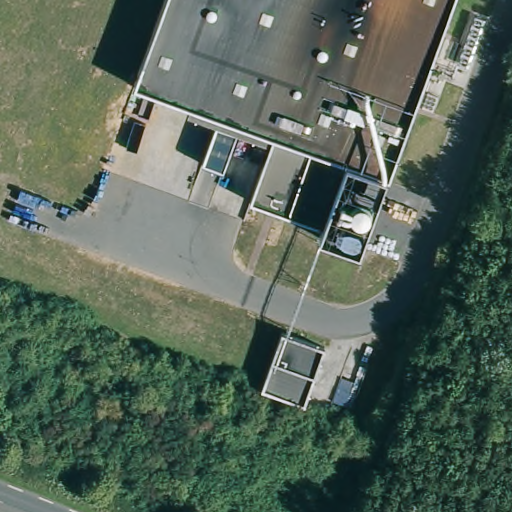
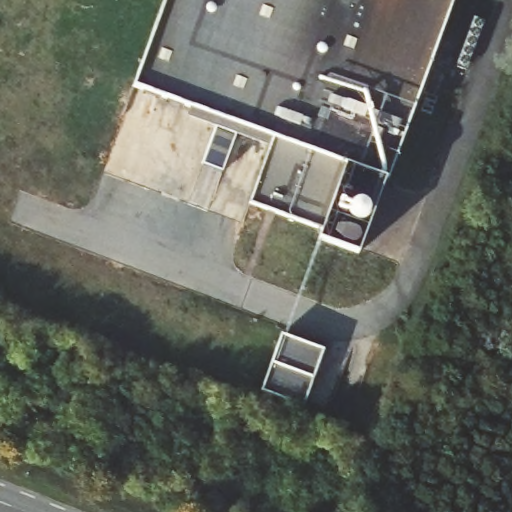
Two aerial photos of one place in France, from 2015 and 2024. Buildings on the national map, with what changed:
unchanged [(357,255),(320,241),(322,232),(248,205),(273,139),(135,86),(167,0),(455,0),(389,180),(385,179),(357,255)]
unchanged [(281,337),(324,351),(302,409),(259,392),(281,337)]

